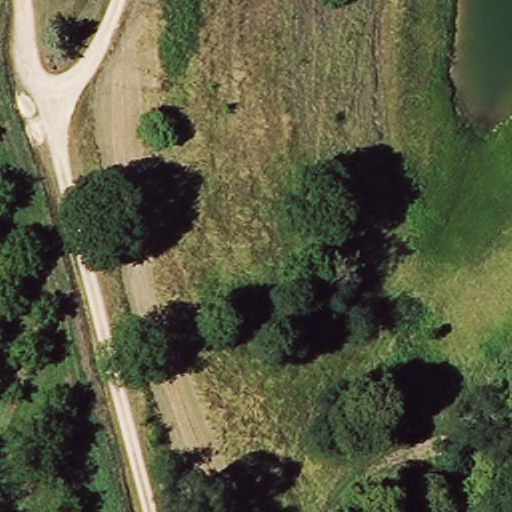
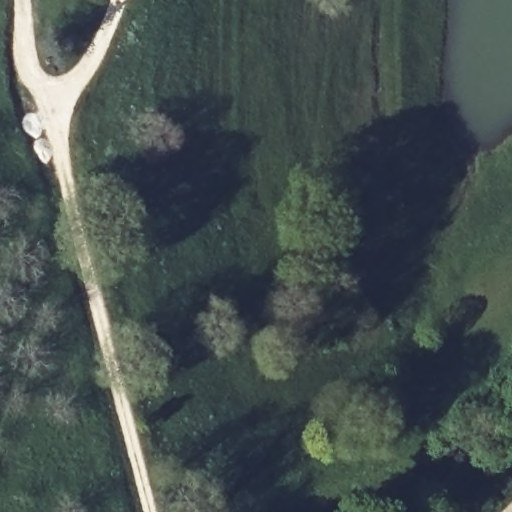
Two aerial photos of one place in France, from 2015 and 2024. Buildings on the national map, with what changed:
unchanged [(79,0),(84,0),(83,1),(79,0)]

